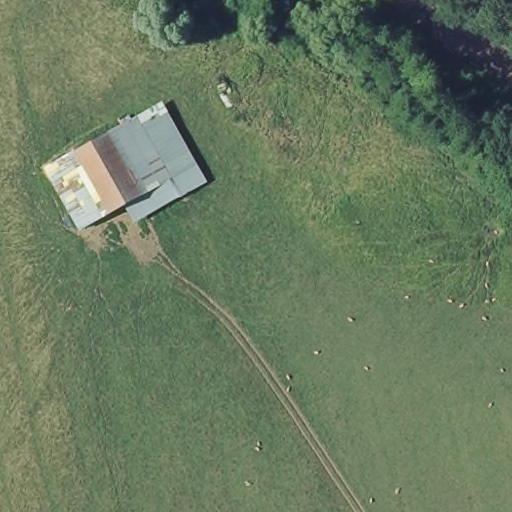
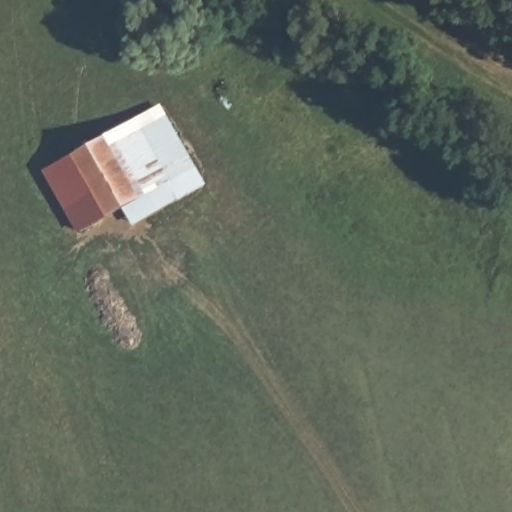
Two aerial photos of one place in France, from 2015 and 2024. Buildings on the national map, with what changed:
unchanged [(211,184),(137,227),(129,210),(84,234),(47,169),(165,105),(211,184)]

